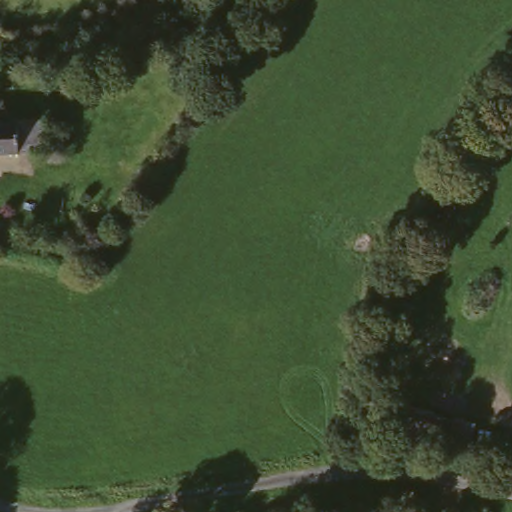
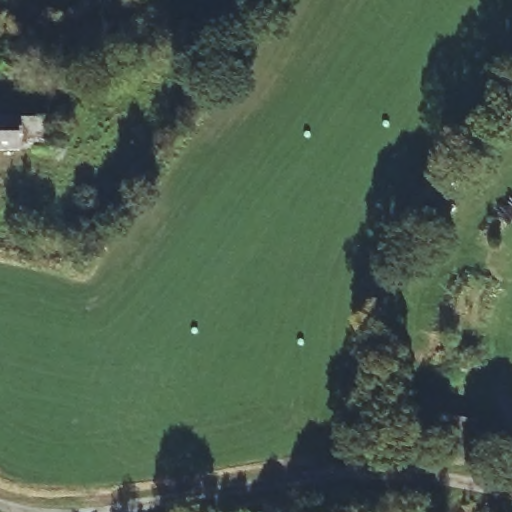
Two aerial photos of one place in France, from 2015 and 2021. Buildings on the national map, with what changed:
unchanged [(15,125),(41,121),(44,156),(19,159),(0,161),(0,129),(15,125)]

